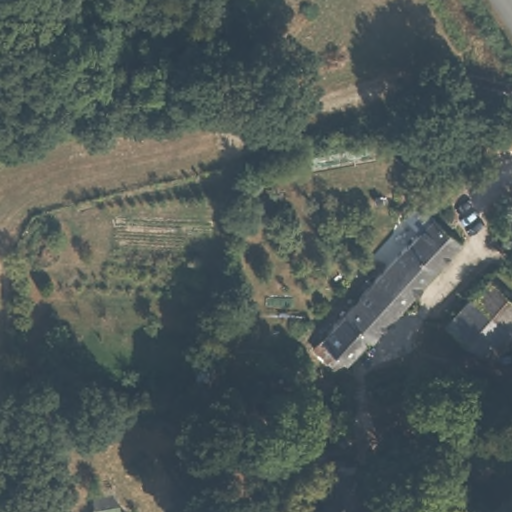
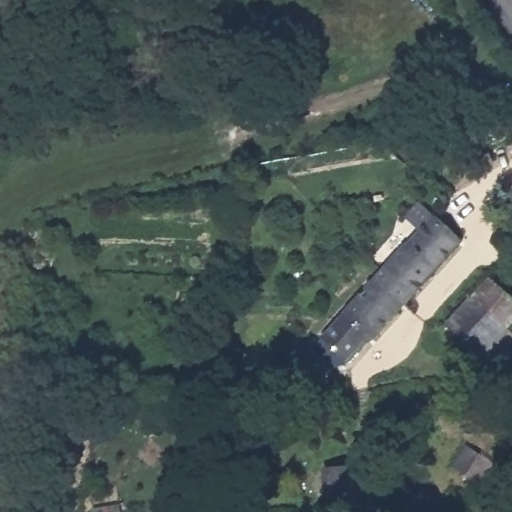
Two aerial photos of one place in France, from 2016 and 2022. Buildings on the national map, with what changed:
unchanged [(464,240),(402,308),(372,282),(405,248),(437,214),(464,240)]
unchanged [(490,277),(512,297),(512,324),(508,329),(472,298),(490,277)]
unchanged [(402,308),(371,342),(368,340),(347,364),(335,353),(326,362),(312,349),(372,282),(402,308)]
unchanged [(508,329),(485,355),(450,325),(472,298),(508,329)]
unchanged [(474,448),(462,472),(447,464),(460,441),(474,448)]
unchanged [(356,466),(355,510),(352,510),(321,510),(321,466),(356,466)]

